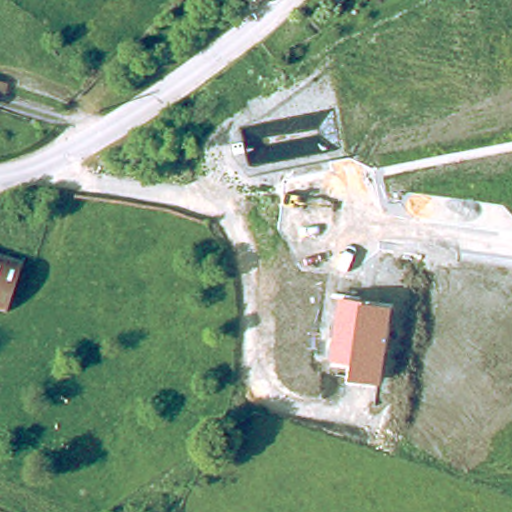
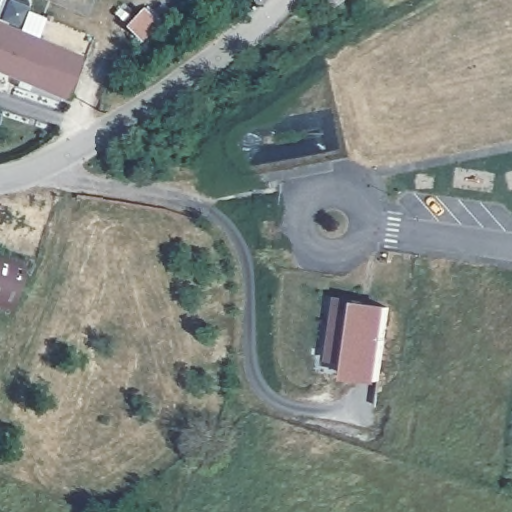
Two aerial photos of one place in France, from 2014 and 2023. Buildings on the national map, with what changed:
unchanged [(335,0),(347,0),(339,5),(335,0)]
new [(80,55),(62,98),(0,74),(0,23),(80,55)]
unchanged [(4,323),(0,322),(0,266),(22,274),(4,323)]
unchanged [(360,300),(392,305),(380,382),(348,379),(350,362),(331,358),(339,297),(360,300)]

